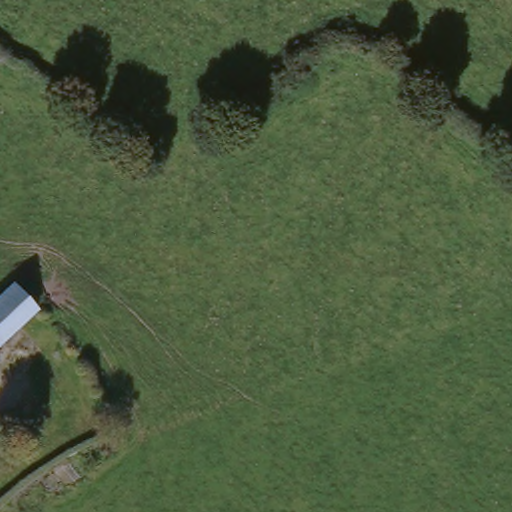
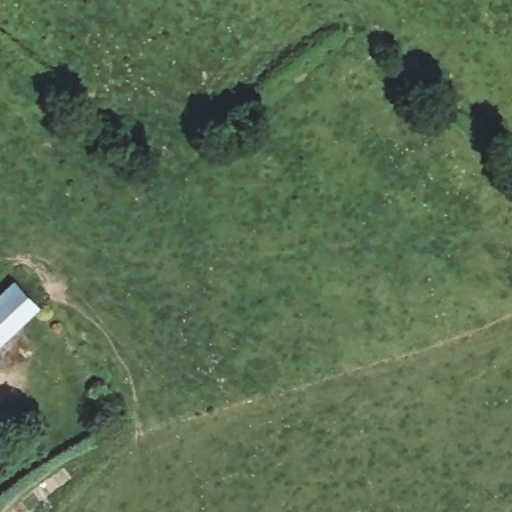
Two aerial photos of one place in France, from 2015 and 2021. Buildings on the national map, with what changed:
unchanged [(0,332),(0,277),(27,300),(0,332)]

